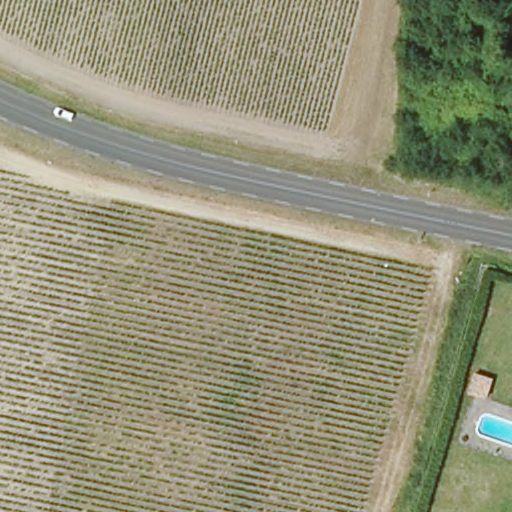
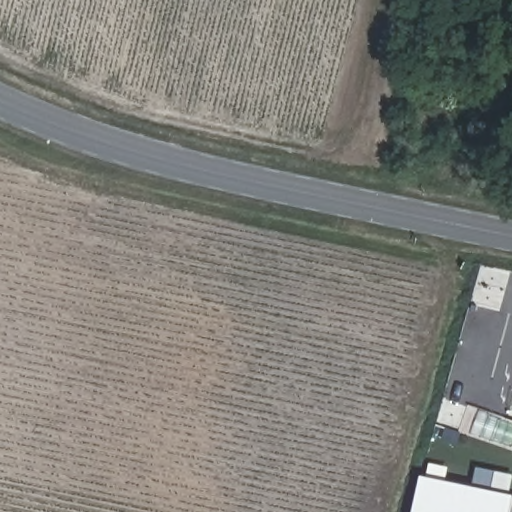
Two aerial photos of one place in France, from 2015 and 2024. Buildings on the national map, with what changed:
new [(512,508),(511,512),(413,512),(420,476),(472,487),(476,469),(500,474),(496,492),(512,495),(512,508)]

